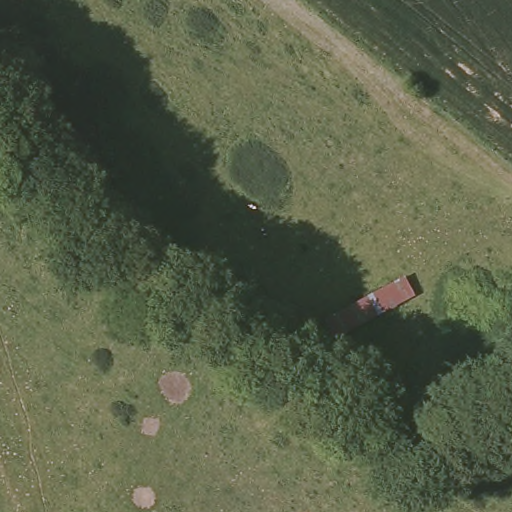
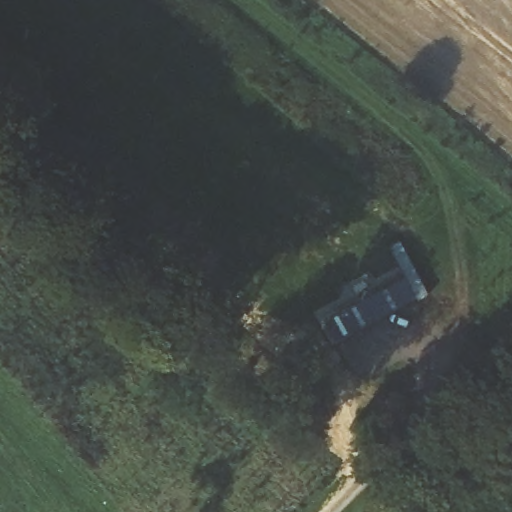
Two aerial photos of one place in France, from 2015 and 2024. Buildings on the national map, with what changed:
unchanged [(406,272),(419,295),(354,327),(342,307),(406,272)]

